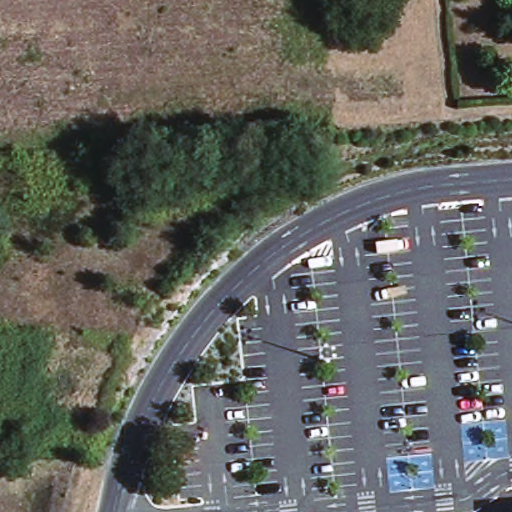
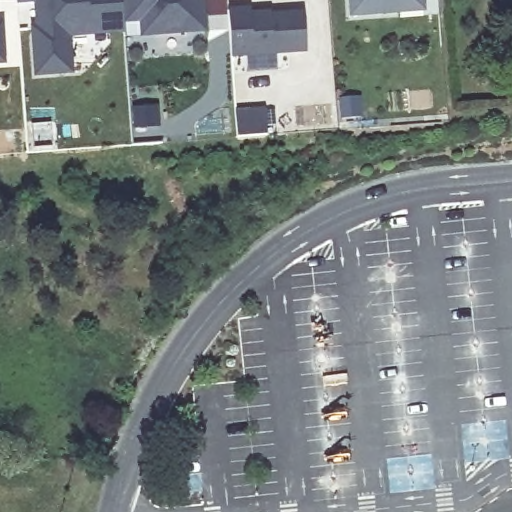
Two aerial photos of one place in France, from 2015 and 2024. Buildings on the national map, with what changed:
new [(85,69),(35,73),(32,28),(17,29),(15,0),(107,0),(109,42),(85,69)]
new [(139,20),(122,21),(121,0),(202,0),(204,15),(205,30),(191,31),(169,33),(140,35),(140,31),(139,20)]
unchanged [(423,0),(424,11),(348,18),(347,0),(423,0)]
new [(231,59),(229,9),(249,8),(250,11),(272,10),(272,13),(302,12),(305,54),(231,59)]
new [(266,110),(267,135),(252,136),(237,137),(235,112),(250,111),(266,110)]

